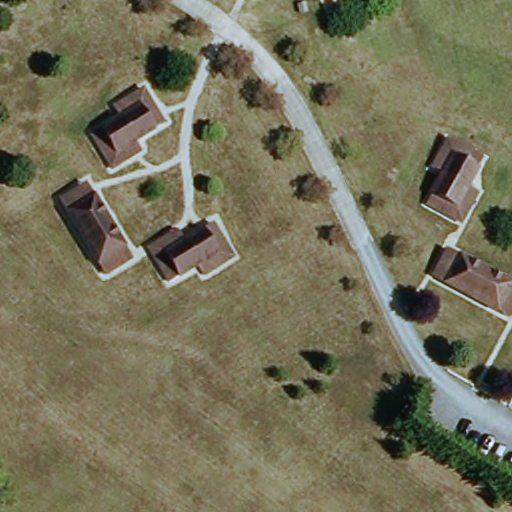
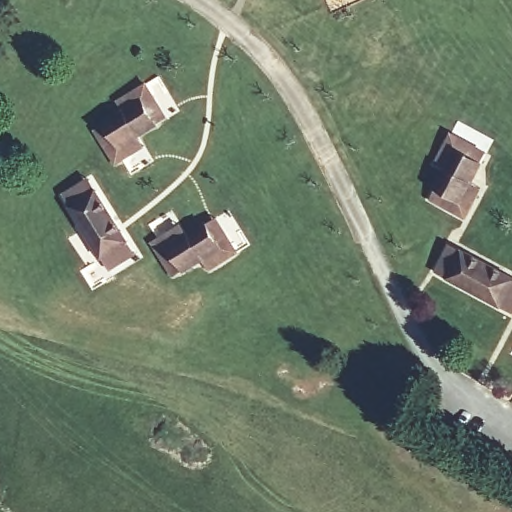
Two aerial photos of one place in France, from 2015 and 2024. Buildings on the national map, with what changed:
unchanged [(125,156),(110,164),(92,127),(122,112),(116,101),(142,85),(155,106),(163,121),(153,126),(135,136),(140,147),(125,156)]
unchanged [(468,202),(460,217),(427,197),(444,167),(433,162),(448,134),(467,144),(483,152),(477,162),(467,181),(478,186),(468,202)]
unchanged [(102,267),(95,254),(60,190),(72,182),(86,174),(94,188),(122,239),(130,251),(102,267)]
unchanged [(201,267),(196,259),(167,273),(149,237),(162,231),(177,222),(182,232),(203,221),(213,216),(222,231),(232,249),(201,267)]
unchanged [(508,313),(497,307),(433,272),(442,255),(447,244),(459,251),(512,280),(512,307),(508,313)]

